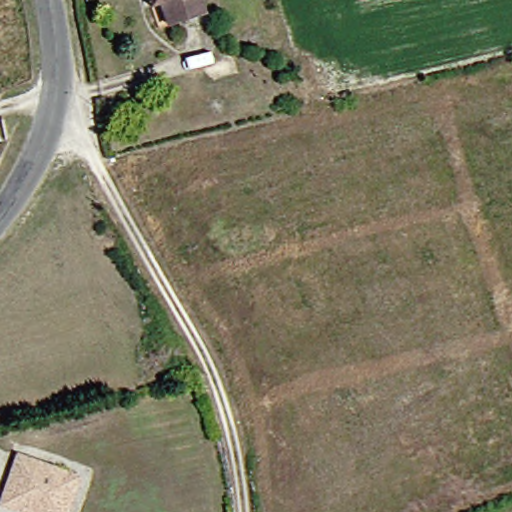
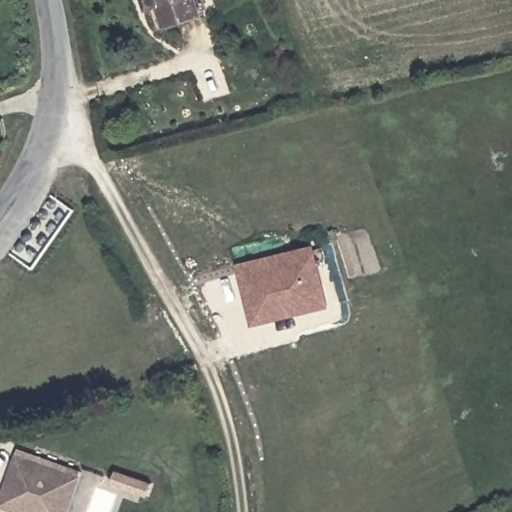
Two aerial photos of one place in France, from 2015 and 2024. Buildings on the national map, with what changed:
unchanged [(173,29),(161,0),(204,0),(211,16),(173,29)]
new [(238,264),(316,245),(333,306),(253,327),(238,264)]
unchanged [(30,455),(59,465),(39,477),(33,503),(62,512),(21,512),(10,509),(30,455)]
unchanged [(62,512),(33,503),(39,477),(59,465),(78,471),(67,512),(62,512)]
unchanged [(79,512),(67,512),(78,471),(91,477),(79,512)]

